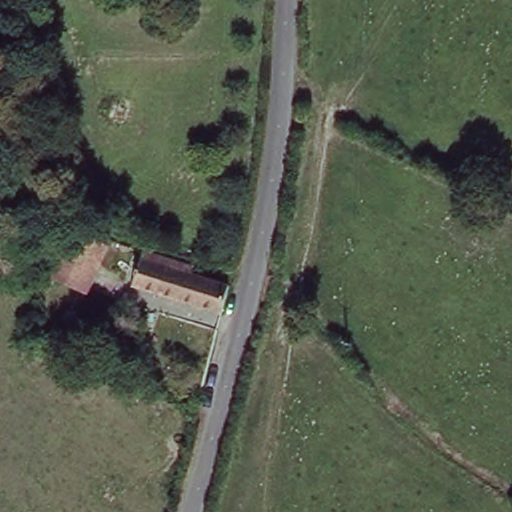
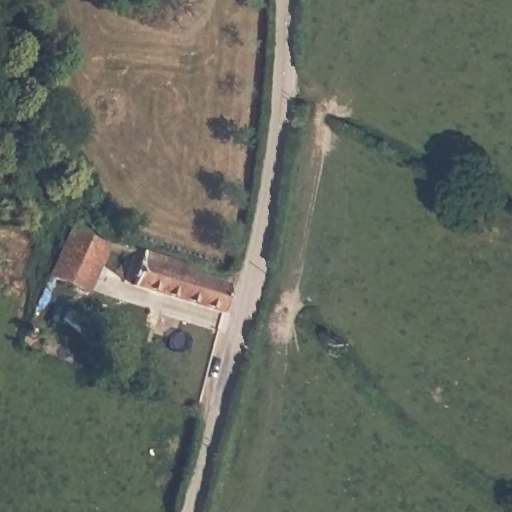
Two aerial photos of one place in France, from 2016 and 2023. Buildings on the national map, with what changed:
unchanged [(92,296),(39,278),(68,230),(110,248),(92,296)]
unchanged [(123,292),(135,257),(184,275),(182,282),(222,295),(213,322),(123,292)]

